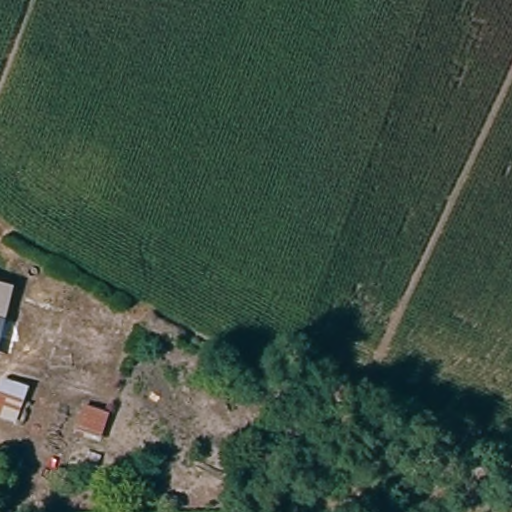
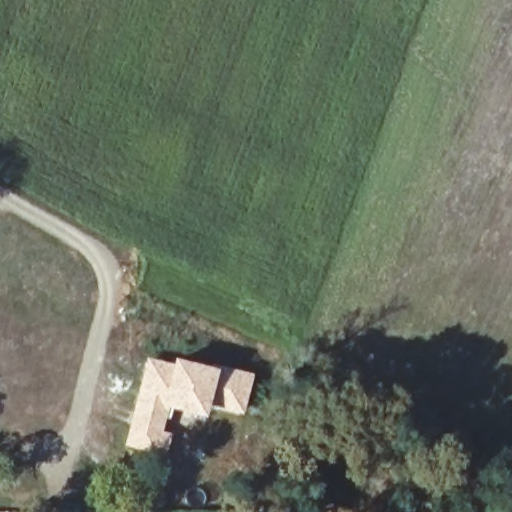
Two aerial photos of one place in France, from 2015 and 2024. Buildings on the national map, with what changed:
new [(147,355),(172,361),(174,355),(254,372),(244,415),(210,406),(207,416),(171,407),(164,429),(173,432),(165,460),(124,446),(147,355)]
demolished [(0,418),(0,384),(2,377),(33,384),(22,424),(0,418)]

